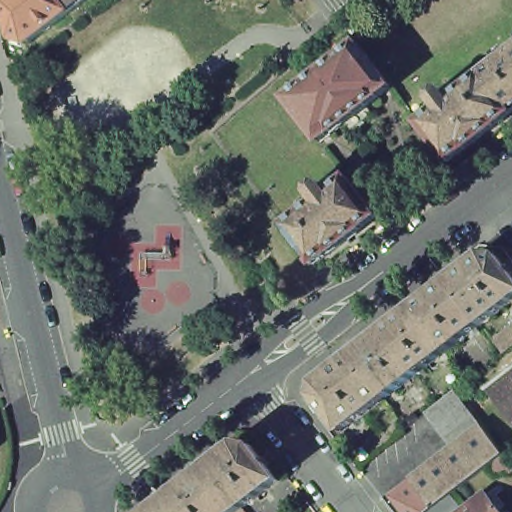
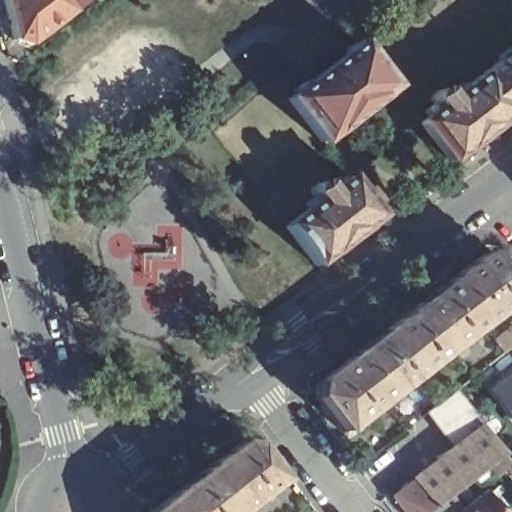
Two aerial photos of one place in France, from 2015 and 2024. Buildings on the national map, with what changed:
unchanged [(70,12),(28,45),(13,39),(3,0),(61,0),(70,12)]
unchanged [(70,12),(61,0),(86,0),(70,12)]
unchanged [(392,92),(380,101),(381,101),(367,112),(371,118),(361,126),(323,76),(359,49),(392,92)]
unchanged [(512,55),(512,109),(486,75),(512,55)]
unchanged [(512,116),(501,125),(469,149),(454,161),(424,123),(443,108),(436,100),(437,94),(443,90),(448,91),(454,99),(486,75),(512,109),(512,116)]
unchanged [(361,126),(351,134),(346,128),(333,138),(321,147),(287,104),(323,76),(361,126)]
unchanged [(367,233),(368,234),(336,258),(319,270),(289,231),(322,206),(316,198),(316,192),(322,188),(328,189),(334,197),(353,182),(383,221),(367,233)]
unchanged [(487,253),(501,254),(512,268),(512,302),(485,323),(452,279),(487,253)]
unchanged [(420,304),(452,279),(485,323),(454,347),(420,304)]
unchanged [(388,328),(420,304),(454,347),(453,347),(422,372),(388,328)]
unchanged [(494,341),(512,326),(512,347),(504,354),(494,341)]
unchanged [(356,353),(388,328),(422,372),(389,396),(356,353)]
unchanged [(319,394),(321,381),(356,353),(389,396),(346,430),(319,394)]
unchanged [(512,378),(512,409),(497,389),(512,378)]
unchanged [(428,412),(439,402),(456,390),(474,415),(447,437),(428,412)]
unchanged [(404,512),(393,497),(414,481),(413,481),(484,427),(504,454),(428,512),(404,512)]
unchanged [(208,471),(243,444),(258,446),(284,481),(248,509),(250,512),(189,512),(176,495),(208,471)]
unchanged [(504,455),(512,466),(512,467),(493,482),(484,470),(504,455)]
unchanged [(189,512),(155,512),(176,495),(189,512)]
unchanged [(498,512),(467,512),(487,497),(498,512)]

